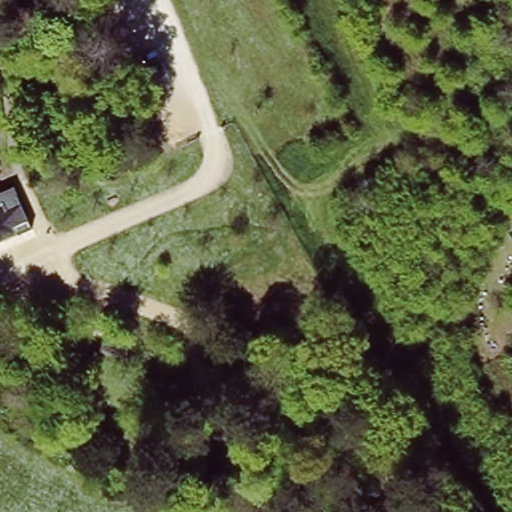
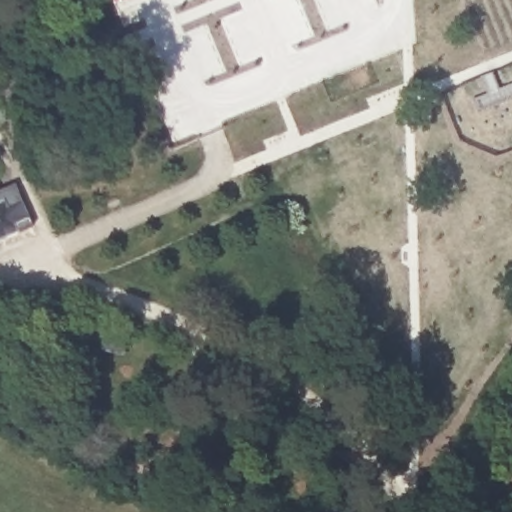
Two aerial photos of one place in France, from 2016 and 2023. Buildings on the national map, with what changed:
unchanged [(18,237),(0,245),(0,197),(3,204),(18,237)]
unchanged [(125,333),(119,353),(100,347),(104,328),(125,333)]

